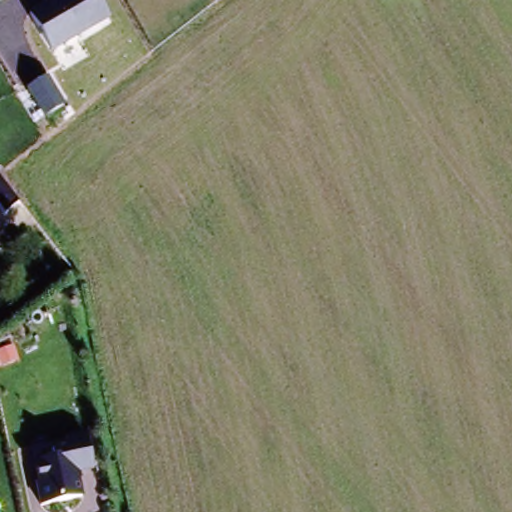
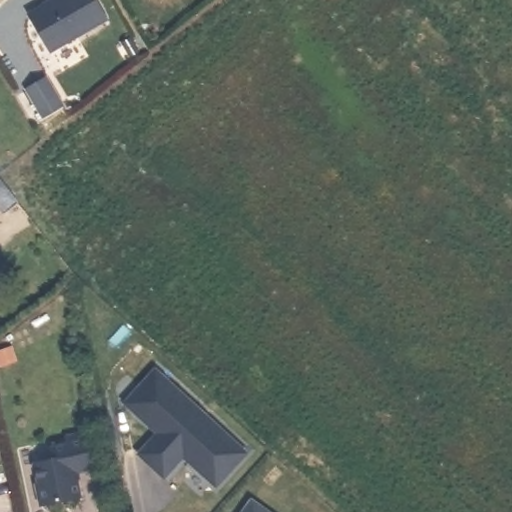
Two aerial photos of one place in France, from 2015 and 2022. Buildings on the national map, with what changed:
unchanged [(99,0),(108,16),(48,50),(28,6),(39,0),(99,0)]
unchanged [(22,191),(28,200),(11,212),(0,198),(0,157),(3,161),(22,191)]
new [(251,453),(217,490),(184,461),(164,480),(136,455),(156,434),(123,405),(156,367),(251,453)]
unchanged [(78,449),(87,498),(43,506),(34,456),(78,449)]
new [(252,501),(267,512),(244,512),(252,501)]

